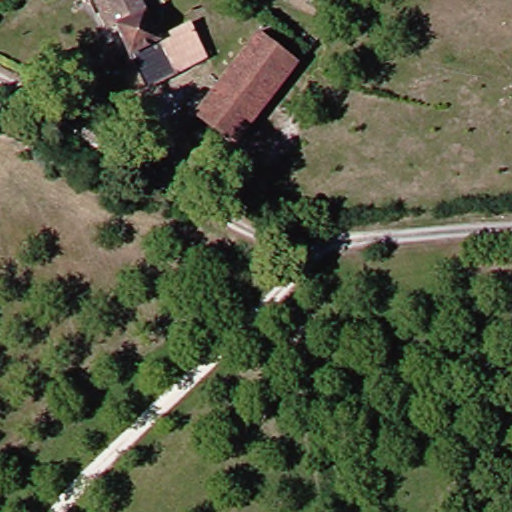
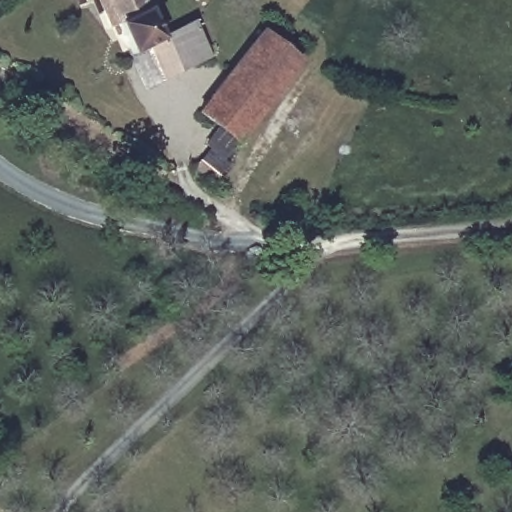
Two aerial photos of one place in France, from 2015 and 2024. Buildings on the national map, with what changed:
unchanged [(181,31),(197,68),(137,93),(95,0),(134,0),(155,43),(181,31)]
unchanged [(234,140),(197,116),(245,45),(249,39),(283,61),(279,67),(234,140)]

